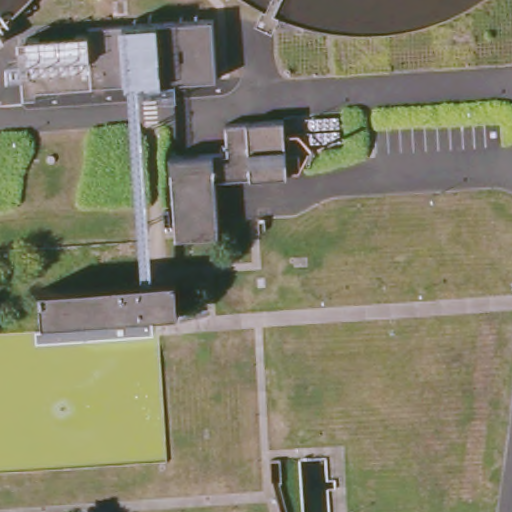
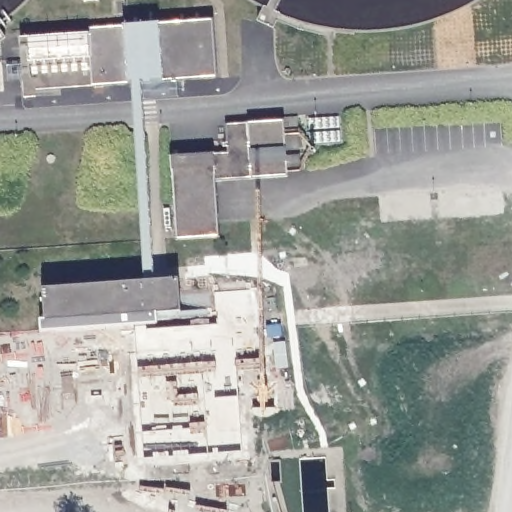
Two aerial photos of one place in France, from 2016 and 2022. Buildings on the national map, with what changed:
unchanged [(91,45),(90,28),(214,19),(218,79),(144,84),(140,85),(135,85),(33,92),(29,49),(91,45)]
unchanged [(144,84),(156,280),(146,281),(135,85),(140,85),(144,84)]
unchanged [(225,153),(223,124),(283,120),(284,136),(296,135),(296,149),(284,149),(284,156),(297,155),(298,170),(286,171),(286,176),(213,181),(218,237),(173,239),(168,157),(225,153)]
unchanged [(181,278),(183,312),(159,314),(159,323),(47,332),(44,288),(146,281),(156,280),(181,278)]

